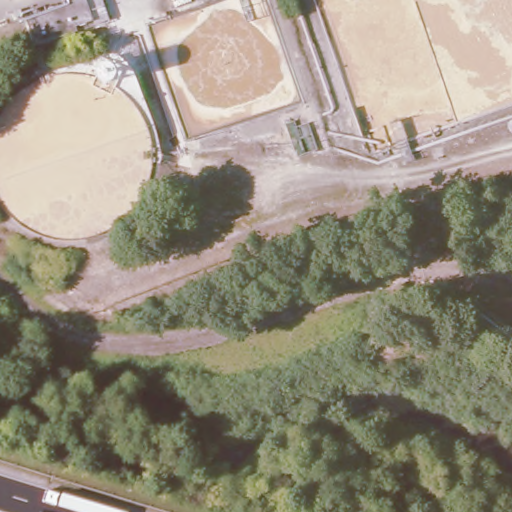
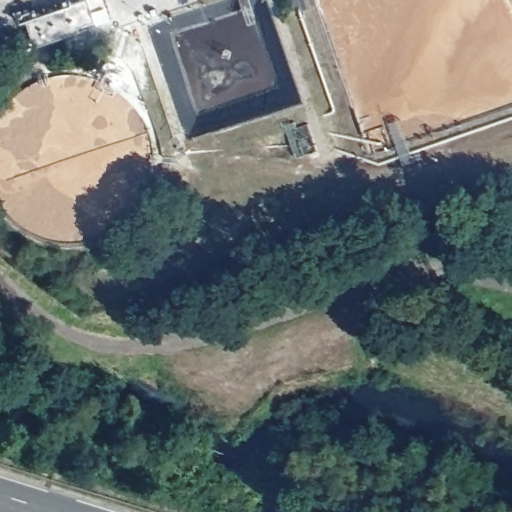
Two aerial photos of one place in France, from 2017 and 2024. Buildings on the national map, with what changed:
unchanged [(79,29),(37,44),(26,15),(67,0),(88,0),(94,16),(77,22),(79,29)]

